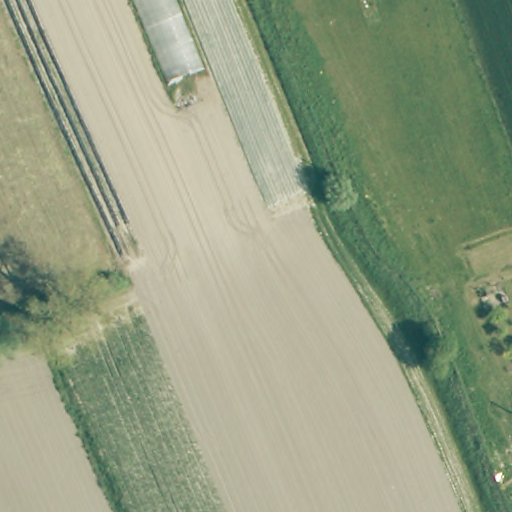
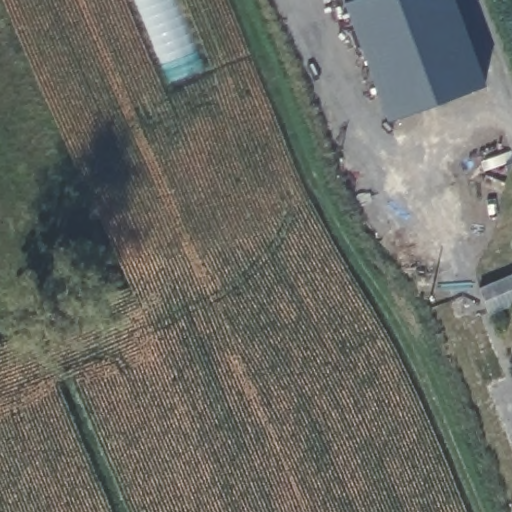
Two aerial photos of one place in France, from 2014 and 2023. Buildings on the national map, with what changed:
unchanged [(171,81),(138,0),(182,0),(210,67),(171,81)]
new [(456,0),(486,82),(391,121),(345,0),(346,0),(456,0)]

